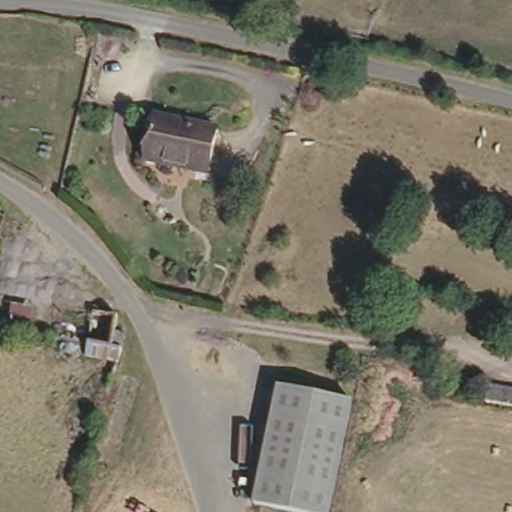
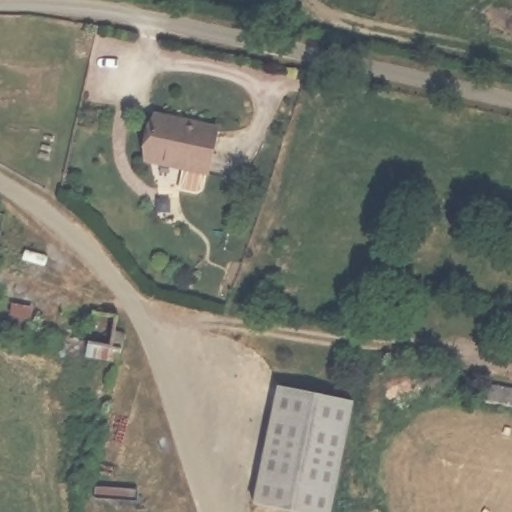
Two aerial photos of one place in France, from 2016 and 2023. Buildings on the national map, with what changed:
unchanged [(150,111),(212,124),(202,168),(141,155),(150,111)]
unchanged [(102,318),(94,356),(0,338),(0,300),(102,318)]
unchanged [(94,356),(102,318),(103,311),(127,316),(125,332),(136,334),(127,363),(94,356)]
unchanged [(493,385),(512,388),(512,406),(491,402),(493,385)]
unchanged [(254,509),(278,392),(352,407),(330,512),(266,512),(254,509)]

